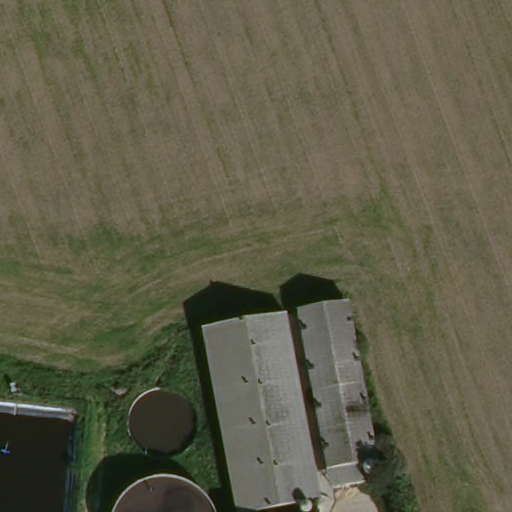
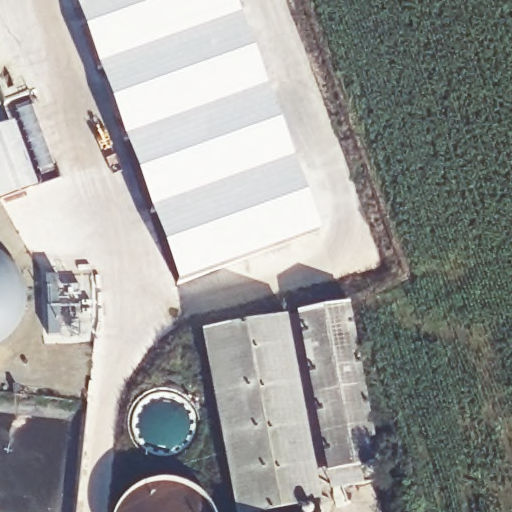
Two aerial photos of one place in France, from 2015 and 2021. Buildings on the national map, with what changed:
new [(320,231),(177,283),(73,0),(234,0),(320,231)]
new [(13,121),(38,187),(0,201),(0,126),(13,121)]
unchanged [(336,486),(333,468),(308,310),(354,302),(371,401),(381,460),(363,463),(367,480),(336,486)]
unchanged [(296,313),(325,502),(260,512),(240,512),(212,326),(296,313)]

